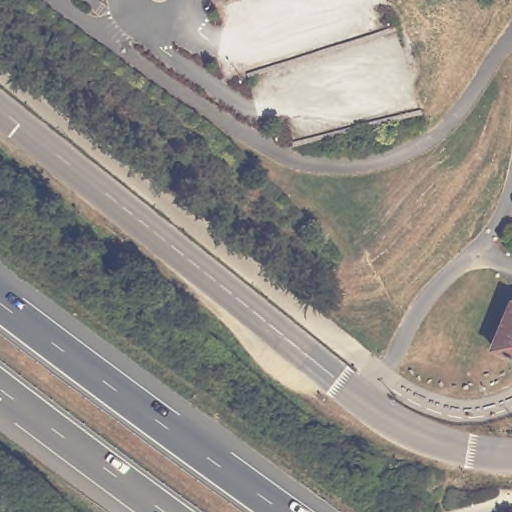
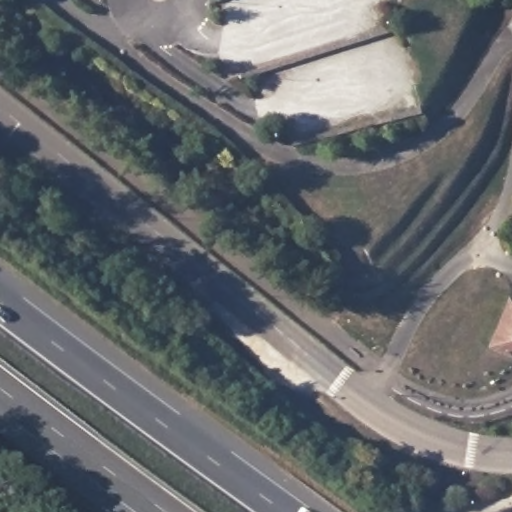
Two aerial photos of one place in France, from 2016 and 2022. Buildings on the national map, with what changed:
unchanged [(512,300),(512,352),(494,345),(512,300)]

